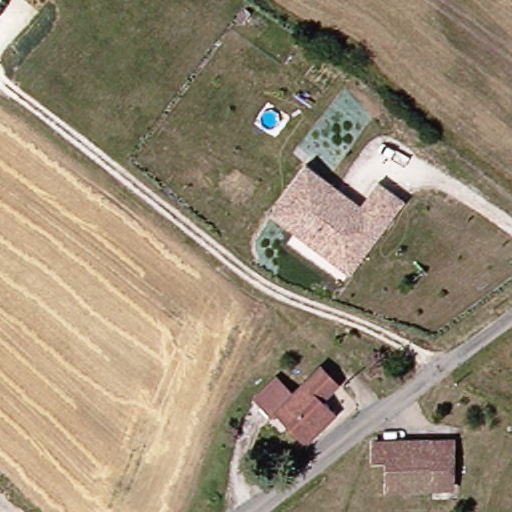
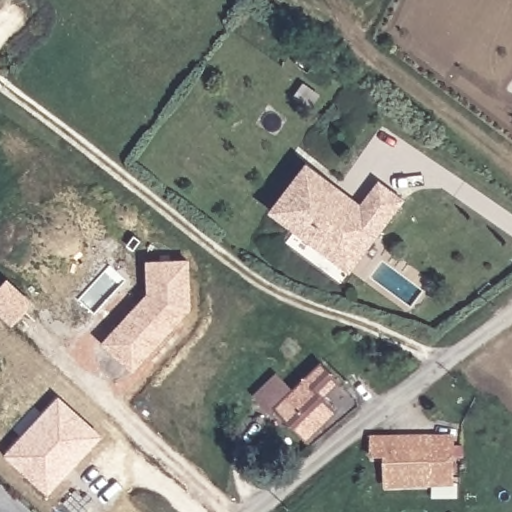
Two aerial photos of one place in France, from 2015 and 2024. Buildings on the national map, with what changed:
unchanged [(332,260),(268,212),(303,165),(358,206),(377,182),(402,200),(376,235),(347,272),(332,260)]
new [(192,310),(135,373),(102,343),(148,294),(146,262),(191,260),(192,310)]
new [(13,326),(0,314),(0,286),(7,278),(34,304),(13,326)]
unchanged [(336,386),(322,400),(328,407),(297,441),(249,401),(267,376),(287,391),(313,366),(336,386)]
new [(49,496),(5,453),(61,394),(104,437),(49,496)]
unchanged [(454,489),(436,488),(387,487),(387,460),(373,460),(375,440),(436,441),(455,442),(454,489)]

